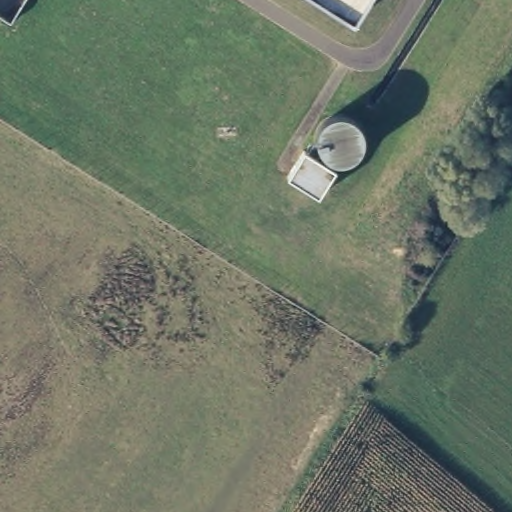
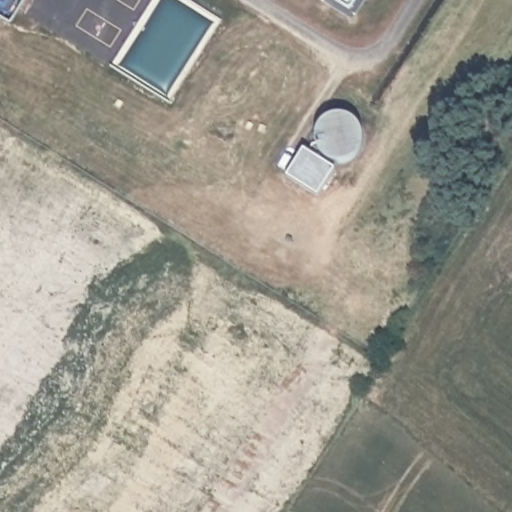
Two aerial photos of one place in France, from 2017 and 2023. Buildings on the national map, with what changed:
unchanged [(322,0),(365,0),(353,20),(322,0)]
unchanged [(354,116),(355,117),(357,118),(358,119),(360,120),(361,121),(362,122),(363,124),(365,125),(365,126),(366,127),(367,129),(367,130),(368,132),(368,134),(368,135),(368,137),(369,139),(368,140),(368,142),(368,144),(368,145),(367,147),(367,149),(366,150),(365,151),(364,152),(363,154),(362,155),(360,156),(360,157),(358,158),(357,159),(355,160),(353,160),(352,161),(350,161),(349,162),(347,162),(345,162),(344,162),(342,162),(340,162),(339,161),(337,161),(336,160),(335,160),(333,159),(332,158),(330,157),(329,156),(328,155),(327,154),(325,152),(325,151),(324,150),(323,148),(322,146),(322,145),(322,143),(322,141),(322,140),(322,138),(322,136),(322,135),(322,134),(322,131),(323,130),(323,129),(324,127),(325,125),(326,125),(327,123),(328,122),(330,120),(332,119),(333,118),(335,117),(337,116),(338,116),(340,115),(341,115),(343,115),(345,115),(346,115),(347,115),(350,115),(351,115),(352,116),(354,116)]
unchanged [(340,169),(323,196),(292,176),(310,150),(340,169)]

